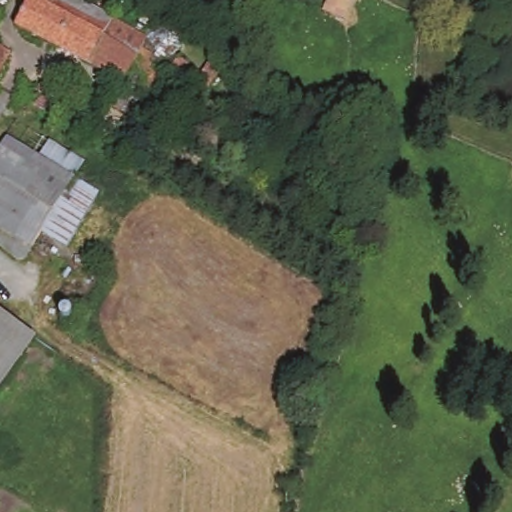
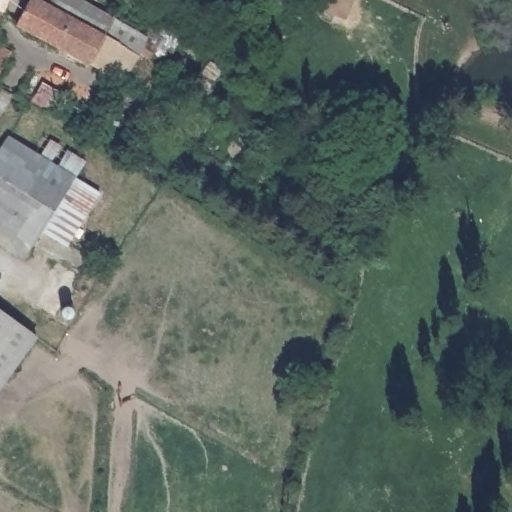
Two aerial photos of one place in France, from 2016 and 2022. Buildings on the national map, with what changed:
unchanged [(152,98),(141,93),(150,78),(129,67),(121,81),(89,64),(16,25),(30,0),(80,0),(144,39),(139,47),(150,53),(145,61),(156,67),(166,73),(152,98)]
unchanged [(0,23),(0,11),(5,14),(0,23)]
unchanged [(0,70),(0,45),(11,51),(0,70)]
unchanged [(204,62),(216,68),(202,94),(190,87),(204,62)]
unchanged [(8,136),(18,120),(85,162),(75,177),(8,136)]
unchanged [(75,177),(43,230),(33,246),(0,225),(0,148),(8,136),(75,177)]
unchanged [(99,193),(67,245),(43,230),(75,177),(99,193)]
unchanged [(0,388),(0,311),(36,337),(0,388)]

